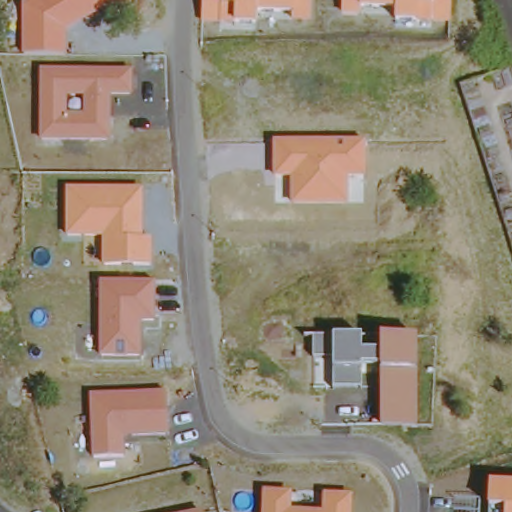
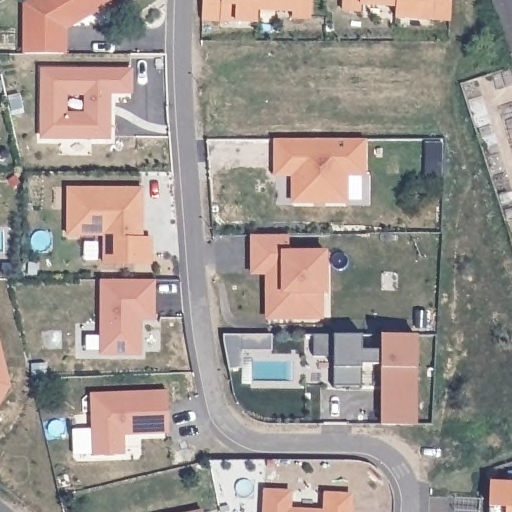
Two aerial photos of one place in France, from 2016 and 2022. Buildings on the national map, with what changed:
unchanged [(127,12),(111,4),(65,31),(65,54),(21,53),(22,3),(28,0),(134,0),(127,12)]
unchanged [(311,18),(290,17),(290,12),(259,10),(259,23),(202,19),(202,0),(311,0),(311,18)]
unchanged [(450,19),(420,16),(420,20),(395,19),(395,6),(362,6),(362,10),(342,9),(342,0),(451,0),(450,19)]
unchanged [(132,70),(132,96),(110,96),(109,141),(40,139),(41,70),(132,70)]
new [(428,139),(445,139),(445,158),(427,157),(428,139)]
unchanged [(364,140),(365,177),(347,177),(347,206),(292,204),(292,176),(272,175),(272,140),(364,140)]
unchanged [(140,189),(142,237),(150,237),(150,265),(102,262),(102,237),(67,237),(67,189),(140,189)]
new [(290,251),(327,250),(328,292),(324,293),(324,318),(265,320),(266,274),(250,273),(250,235),(289,236),(290,251)]
unchanged [(153,281),(154,321),(140,320),(140,356),(100,355),(100,281),(153,281)]
unchanged [(364,335),(363,352),(380,351),(380,332),(416,335),(417,428),(380,426),(379,366),(362,366),(362,390),(332,390),(332,367),(334,367),(333,360),(312,359),(312,335),(364,335)]
new [(0,403),(0,341),(11,386),(0,403)]
unchanged [(172,437),(127,438),(127,460),(95,461),(92,398),(170,393),(172,437)]
unchanged [(489,512),(490,482),(512,483),(512,512),(489,512)]
unchanged [(290,509),(321,510),(321,493),(351,495),(350,512),(262,512),(263,490),(290,491),(290,509)]

